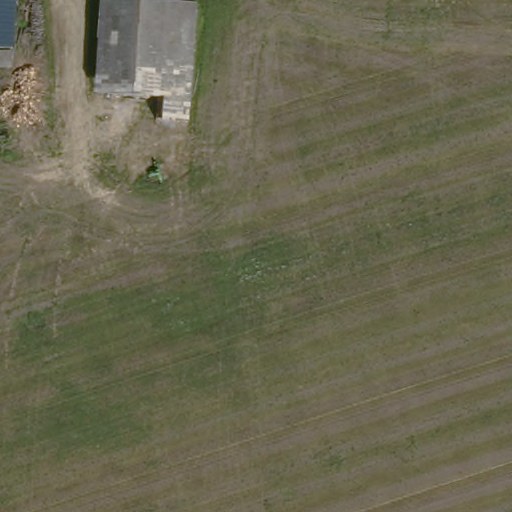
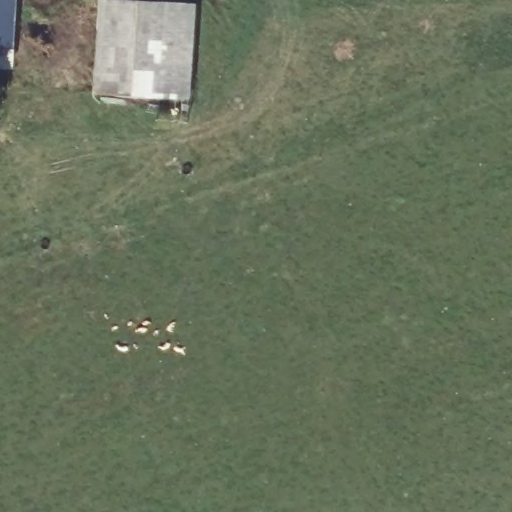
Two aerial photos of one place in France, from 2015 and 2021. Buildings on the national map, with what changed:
unchanged [(0,62),(0,0),(10,0),(10,62),(0,62)]
unchanged [(178,99),(94,72),(109,6),(187,10),(178,99)]

